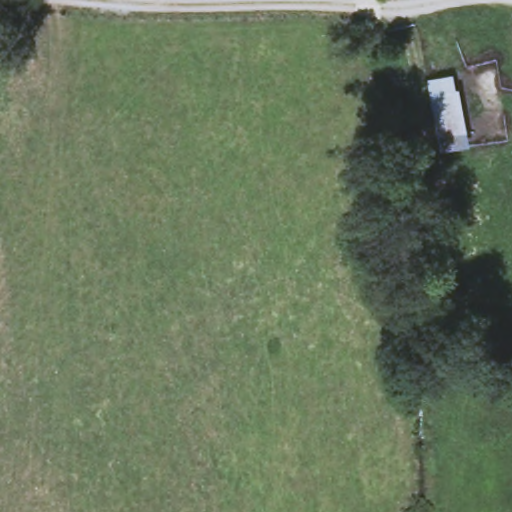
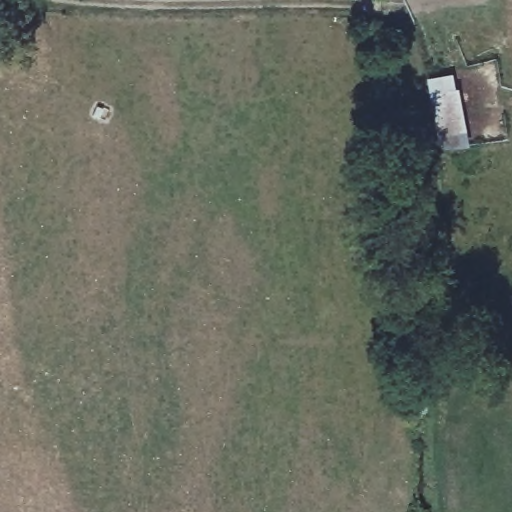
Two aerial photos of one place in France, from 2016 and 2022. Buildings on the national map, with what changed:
unchanged [(457,67),(468,132),(438,135),(428,74),(457,67)]

